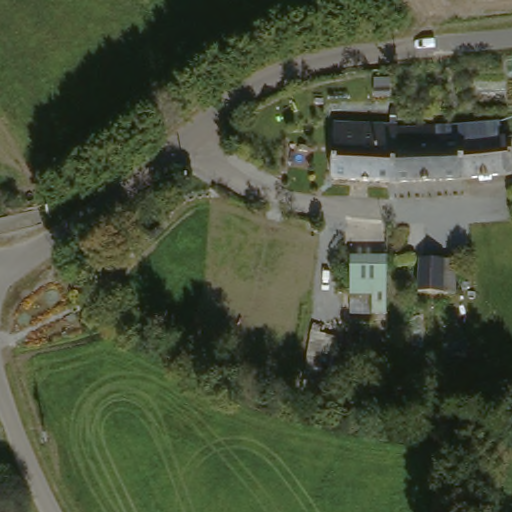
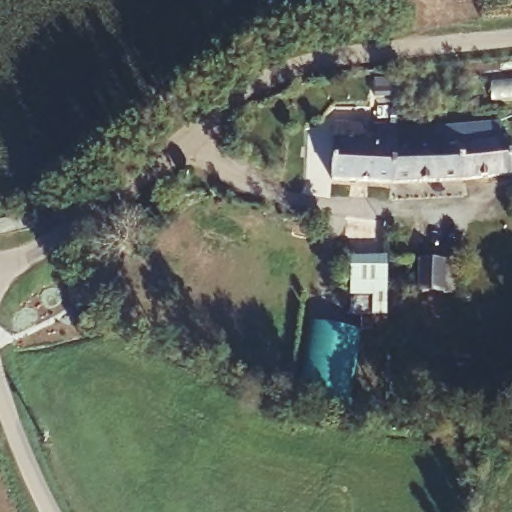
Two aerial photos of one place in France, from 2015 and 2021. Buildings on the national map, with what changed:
unchanged [(328,131),(390,137),(390,142),(386,190),(323,184),(328,131)]
unchanged [(457,136),(488,133),(489,148),(502,147),(505,181),(453,189),(457,136)]
unchanged [(390,142),(457,136),(453,189),(386,190),(390,142)]
unchanged [(350,261),(383,262),(381,317),(347,314),(350,261)]
unchanged [(416,263),(453,264),(452,296),(415,294),(416,263)]

